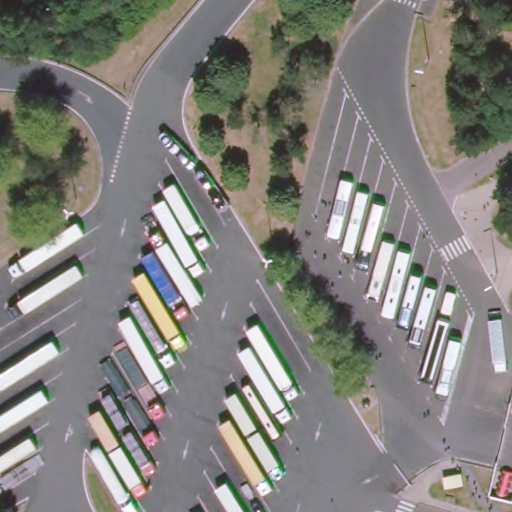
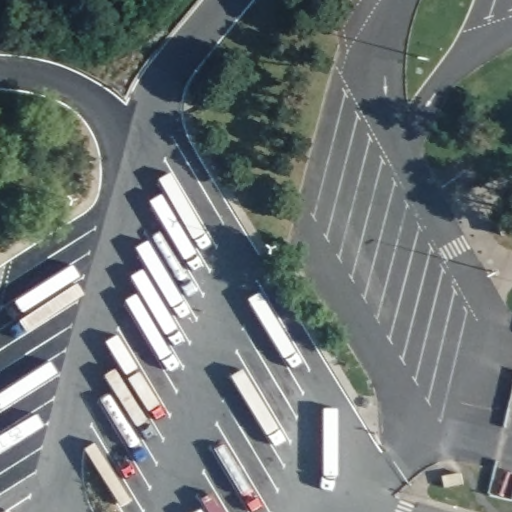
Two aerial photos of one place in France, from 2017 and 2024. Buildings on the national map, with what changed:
unchanged [(447,491),(446,479),(465,477),(466,488),(447,491)]

